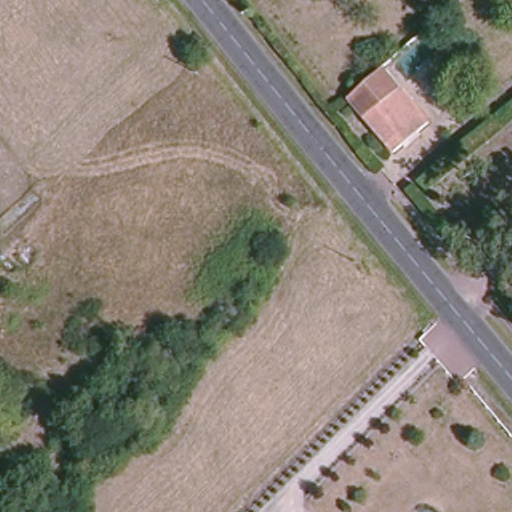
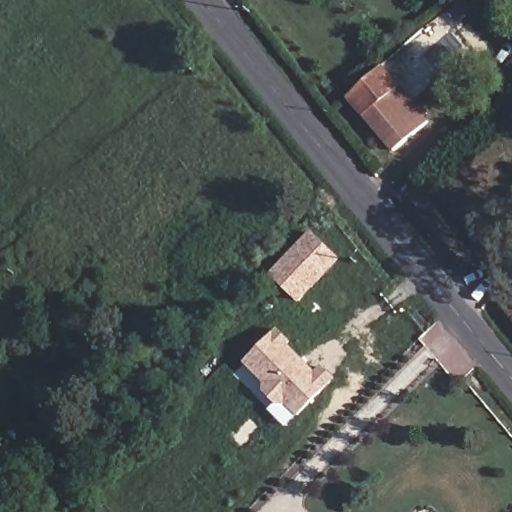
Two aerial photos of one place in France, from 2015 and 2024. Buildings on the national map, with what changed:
unchanged [(383,61),(437,119),(399,154),(347,95),(383,61)]
new [(310,231),(341,260),(300,303),(270,275),(310,231)]
new [(283,406),(275,404),(263,392),(263,384),(242,364),(273,331),(315,371),(322,364),(335,379),(295,420),(283,406)]

